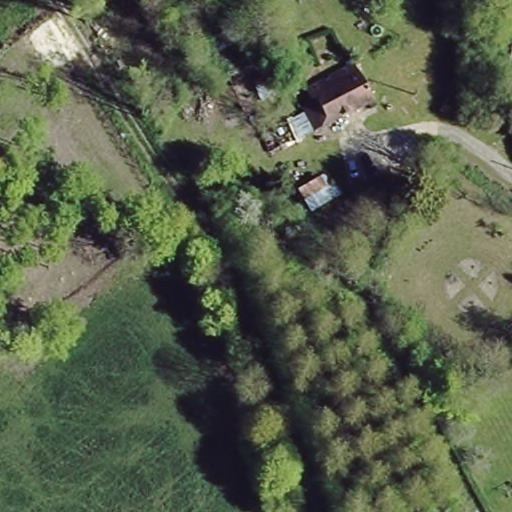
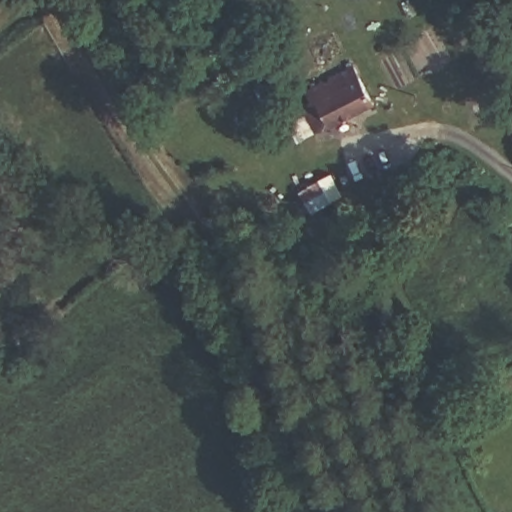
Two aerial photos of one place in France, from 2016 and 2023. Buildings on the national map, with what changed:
unchanged [(356,76),(368,105),(319,131),(299,97),(356,76)]
unchanged [(330,176),(342,195),(312,215),(295,192),(330,176)]

